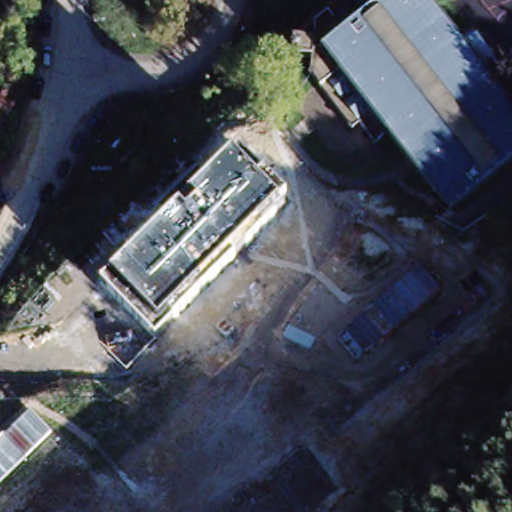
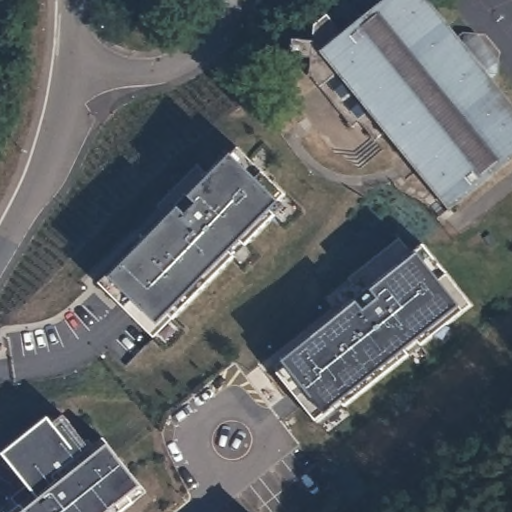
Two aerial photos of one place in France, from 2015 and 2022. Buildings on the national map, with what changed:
unchanged [(387,135),(378,142),(362,122),(355,129),(324,90),(318,84),(312,78),(314,61),(293,58),(295,42),(316,45),(318,31),(350,1),(355,9),(368,0),(383,0),(385,4),(324,54),(387,135)]
unchanged [(466,35),(480,36),(502,64),(501,79),(496,83),(512,103),(512,164),(451,213),(387,135),(324,54),(385,4),(390,0),(429,0),(461,40),(466,35)]
unchanged [(110,275),(232,155),(239,148),(286,194),(279,200),(272,207),(277,212),(155,336),(100,282),(110,275)]
new [(320,425),(316,419),(280,373),(272,366),(281,358),(343,309),(335,298),(355,284),(350,277),(400,238),(412,249),(415,253),(425,247),(448,275),(472,305),(346,405),(320,425)]
new [(4,452),(50,417),(55,424),(65,416),(91,448),(97,454),(109,445),(142,485),(147,491),(134,502),(121,512),(13,512),(20,507),(12,498),(28,485),(4,452)]

